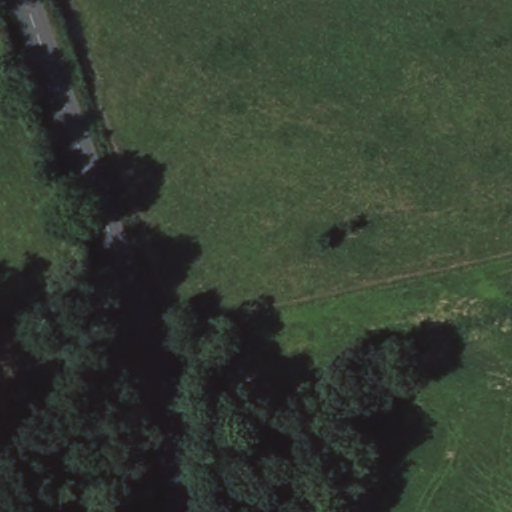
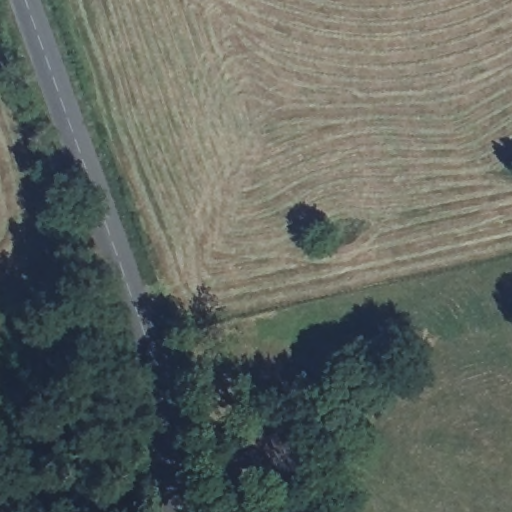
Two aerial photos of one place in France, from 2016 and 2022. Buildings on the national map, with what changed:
[]

